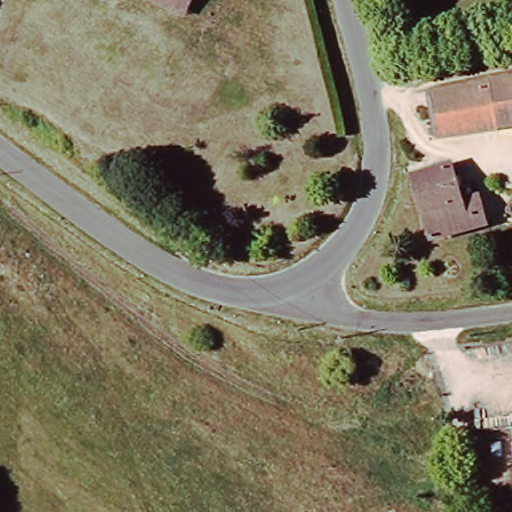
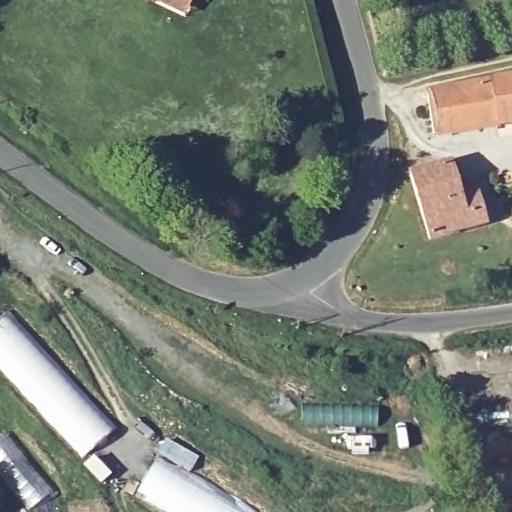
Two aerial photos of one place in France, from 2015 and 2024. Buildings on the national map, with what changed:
unchanged [(163,0),(202,0),(199,8),(195,16),(162,2),(163,0)]
unchanged [(512,81),(512,126),(446,139),(437,97),(512,81)]
unchanged [(437,242),(417,171),(460,159),(473,206),(483,206),(487,228),(437,242)]
new [(0,366),(0,319),(8,312),(116,428),(82,458),(0,366)]
new [(243,512),(166,512),(136,494),(157,461),(243,512)]

